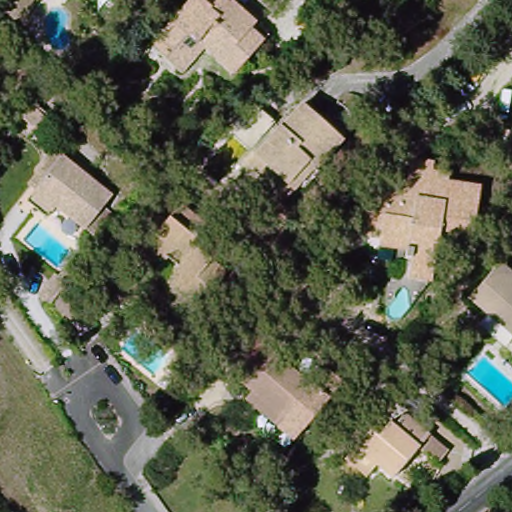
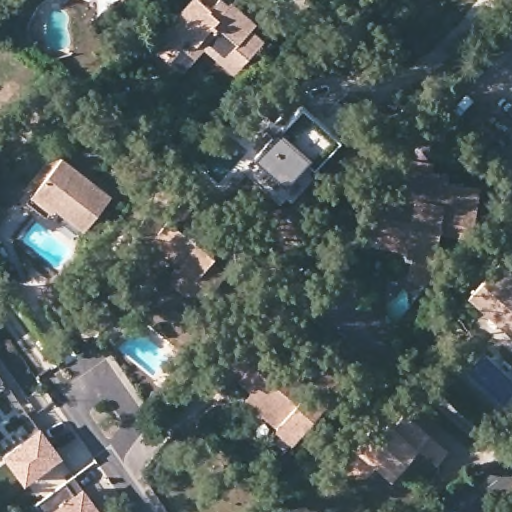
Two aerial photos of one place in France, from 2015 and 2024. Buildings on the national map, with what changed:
unchanged [(193,0),(194,0),(195,1),(197,0),(217,0),(227,9),(230,5),(253,25),(248,32),(261,45),(246,62),(228,48),(223,52),(204,35),(171,70),(149,51),(193,0)]
unchanged [(231,79),(203,55),(182,79),(171,70),(204,35),(223,52),(228,48),(246,62),(231,79)]
unchanged [(33,106),(47,118),(32,134),(24,128),(26,126),(20,119),(33,106)]
unchanged [(305,106),(343,139),(316,170),(289,200),(250,166),(258,158),(305,106)]
unchanged [(59,161),(108,202),(83,236),(53,213),(49,219),(28,203),(59,161)]
unchanged [(412,284),(416,256),(382,252),(383,244),(365,240),(367,218),(376,219),(379,195),(393,197),(395,188),(409,189),(413,164),(436,166),(435,176),(451,178),(450,186),(482,190),(474,242),(442,237),(439,259),(434,287),(412,284)]
unchanged [(159,217),(173,228),(176,224),(196,240),(204,239),(204,246),(222,261),(219,265),(233,277),(218,296),(192,300),(179,290),(178,275),(182,270),(174,264),(170,268),(158,272),(145,261),(144,235),(159,217)]
unchanged [(512,266),(512,334),(468,294),(497,259),(509,269),(512,266)]
unchanged [(65,264),(70,270),(61,277),(56,271),(65,264)]
unchanged [(63,316),(57,309),(52,313),(42,300),(75,275),(85,288),(72,298),(77,306),(63,316)]
unchanged [(253,392),(241,382),(245,377),(233,367),(262,331),(275,341),(269,348),(331,399),(295,442),(275,426),(245,401),(253,392)]
unchanged [(457,333),(464,339),(456,349),(448,343),(457,333)]
unchanged [(366,426),(375,433),(385,420),(390,424),(401,410),(426,430),(445,446),(434,459),(414,443),(389,474),(373,461),(363,473),(342,456),(352,444),(366,426)]
new [(40,426),(62,456),(25,483),(3,454),(40,426)]
new [(103,512),(42,512),(37,504),(66,483),(75,493),(84,486),(103,512)]

